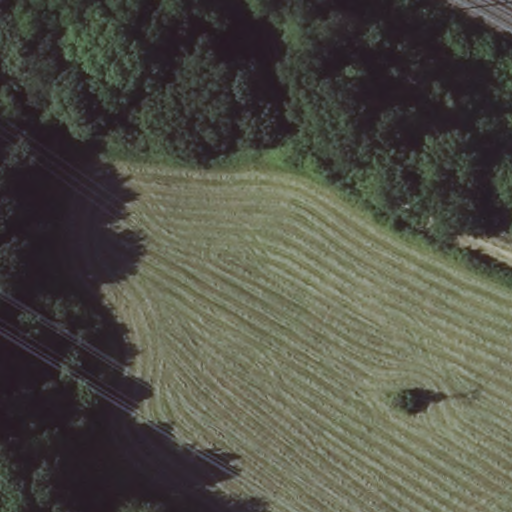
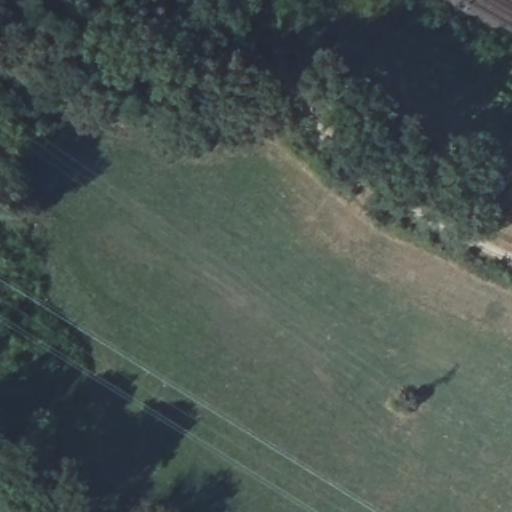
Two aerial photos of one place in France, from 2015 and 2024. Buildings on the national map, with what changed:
[]

